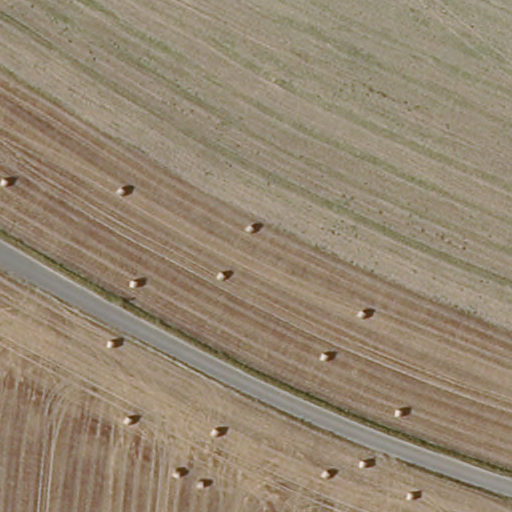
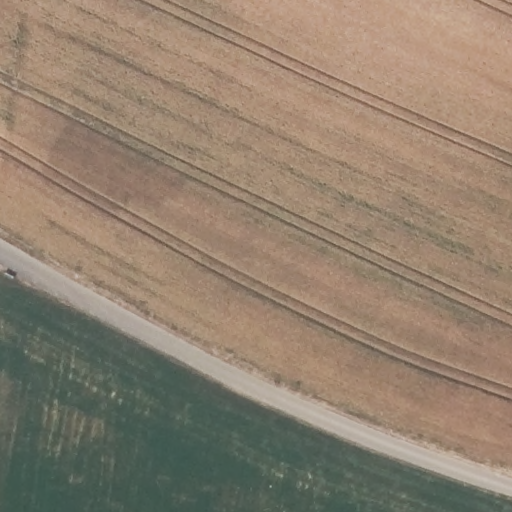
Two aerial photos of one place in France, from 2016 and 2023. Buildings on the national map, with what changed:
[]

